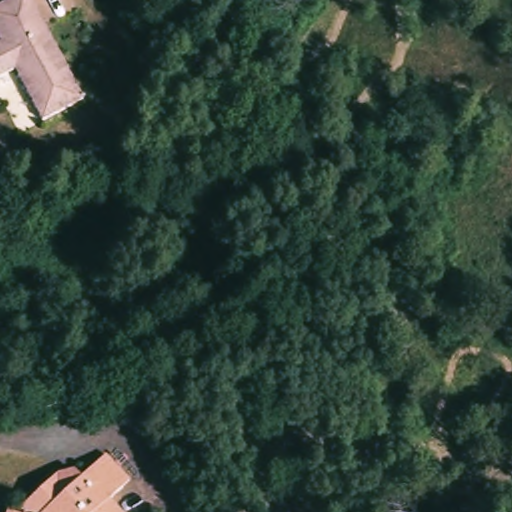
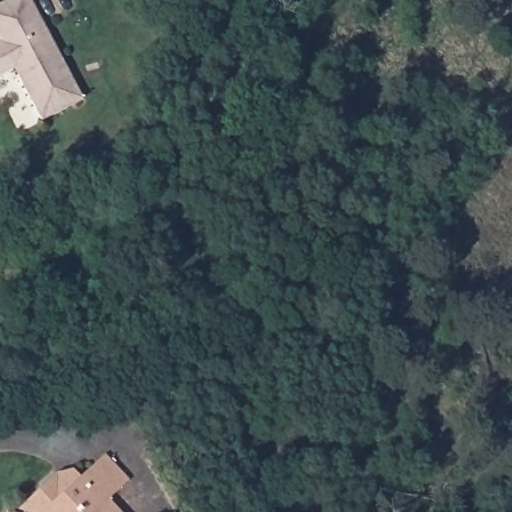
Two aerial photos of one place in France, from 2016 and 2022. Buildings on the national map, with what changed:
unchanged [(41,124),(12,72),(0,79),(0,6),(11,0),(26,0),(82,101),(41,124)]
unchanged [(214,308),(222,334),(164,353),(155,328),(214,308)]
unchanged [(121,512),(25,512),(20,508),(25,502),(58,472),(75,470),(80,477),(95,464),(106,453),(130,479),(119,490),(109,499),(121,512)]

